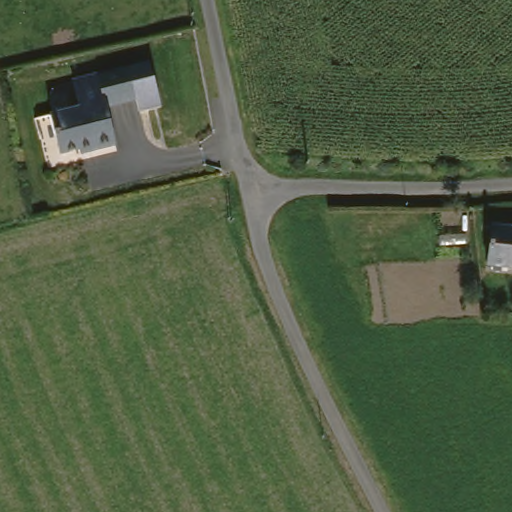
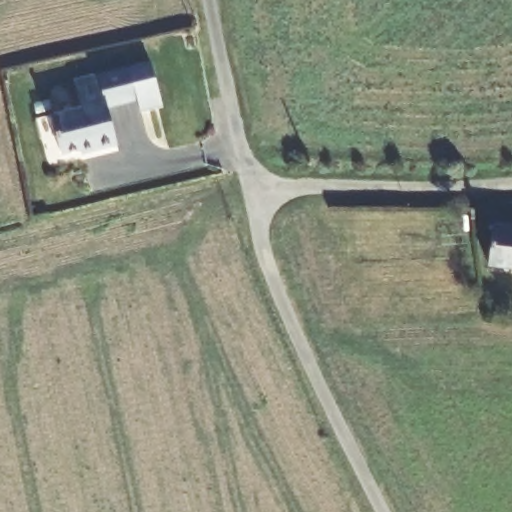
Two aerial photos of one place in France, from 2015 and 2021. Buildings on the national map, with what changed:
unchanged [(50,145),(44,108),(73,102),(67,73),(141,58),(150,100),(128,105),(125,93),(97,98),(105,138),(87,142),(88,146),(72,150),(70,141),(50,145)]
unchanged [(500,229),(512,230),(512,271),(495,269),(500,229)]

